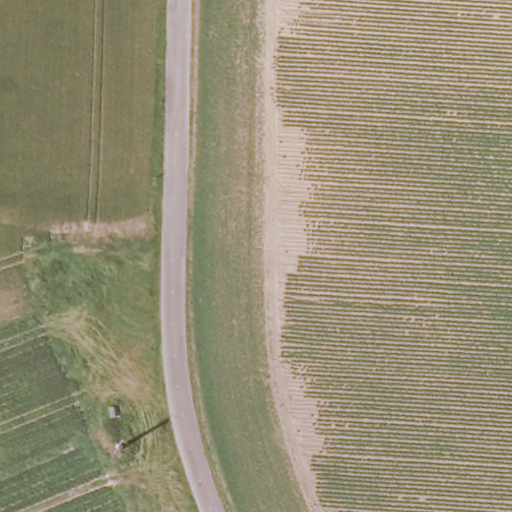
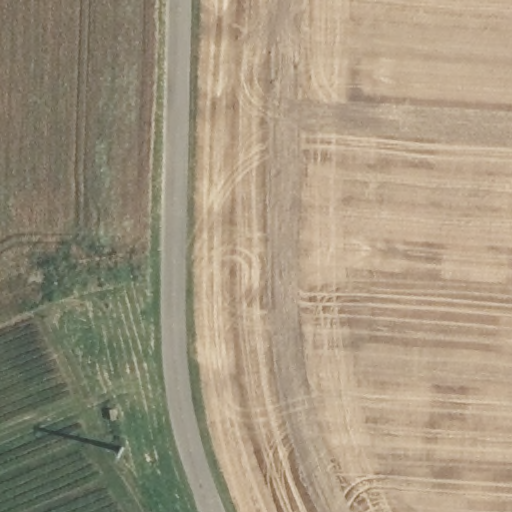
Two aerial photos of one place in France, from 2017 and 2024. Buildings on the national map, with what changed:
[]

